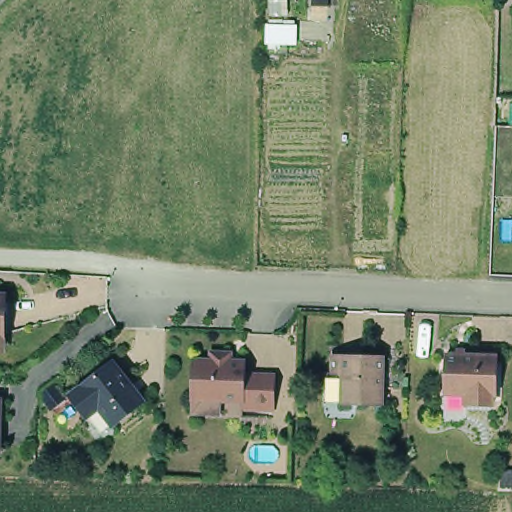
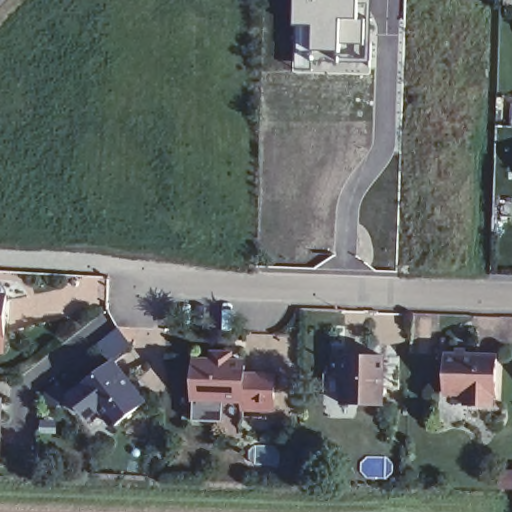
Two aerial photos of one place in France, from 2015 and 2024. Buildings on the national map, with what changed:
new [(361,18),(341,18),(338,52),(311,51),(311,26),(294,25),(294,0),(371,0),(370,18),(361,18)]
new [(338,52),(341,18),(361,18),(370,18),(370,63),(338,63),(338,52)]
unchanged [(1,288),(0,318),(0,289),(1,288)]
unchanged [(487,399),(458,398),(459,388),(438,387),(441,347),(490,349),(487,399)]
unchanged [(138,392),(114,412),(99,393),(85,405),(67,383),(109,349),(129,373),(126,376),(138,392)]
unchanged [(192,401),(191,350),(237,349),(240,361),(272,365),(271,404),(192,401)]
unchanged [(323,369),(330,369),(330,350),(381,352),(379,399),(340,397),(321,396),(323,369)]

